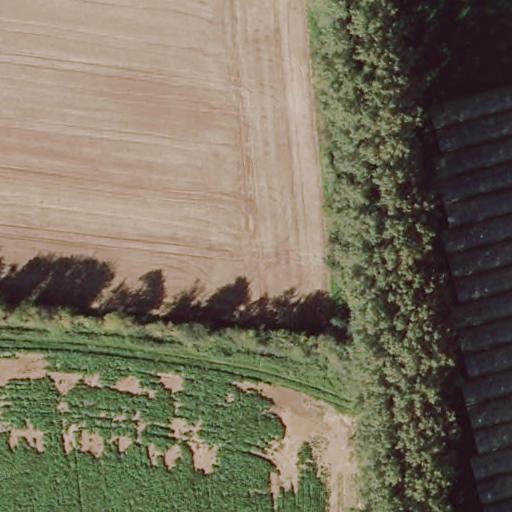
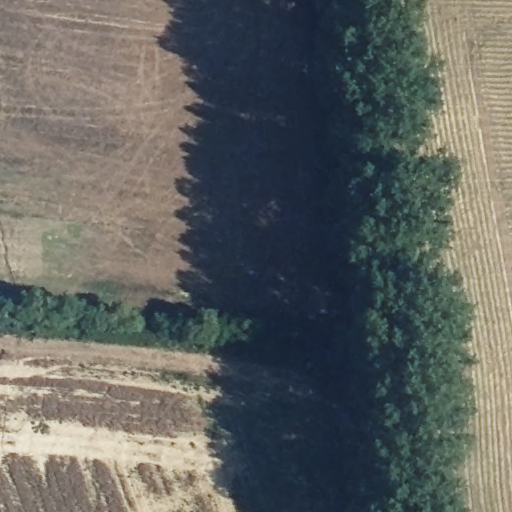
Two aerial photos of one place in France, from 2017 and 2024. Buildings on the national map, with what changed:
demolished [(477,452),(459,382),(467,380),(448,308),(457,306),(439,233),(449,230),(430,158),(440,155),(427,108),(512,86),(512,443),(477,452)]
demolished [(484,512),(470,454),(477,452),(512,443),(512,512),(484,512)]

